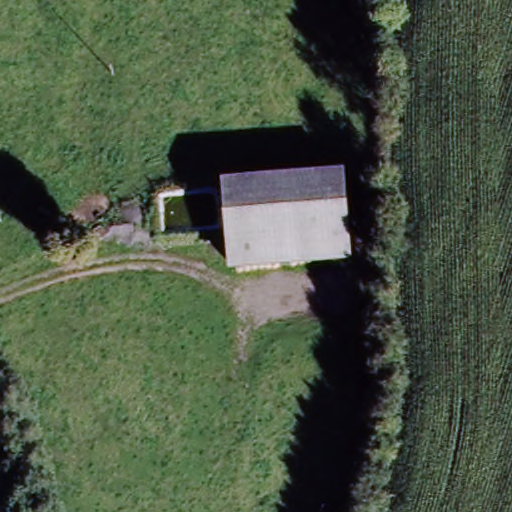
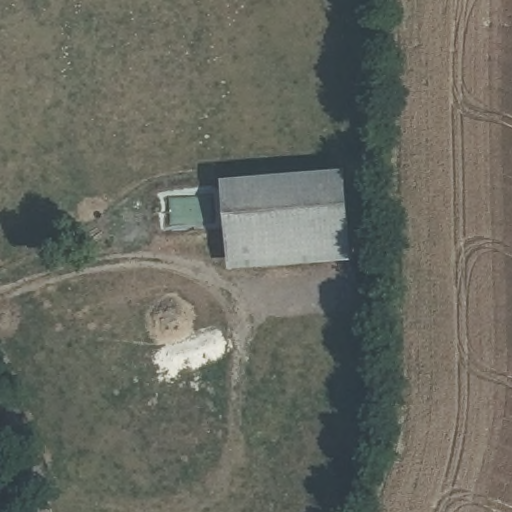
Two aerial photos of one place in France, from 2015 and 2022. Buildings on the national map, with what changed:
unchanged [(222,176),(345,168),(352,256),(230,265),(222,176)]

